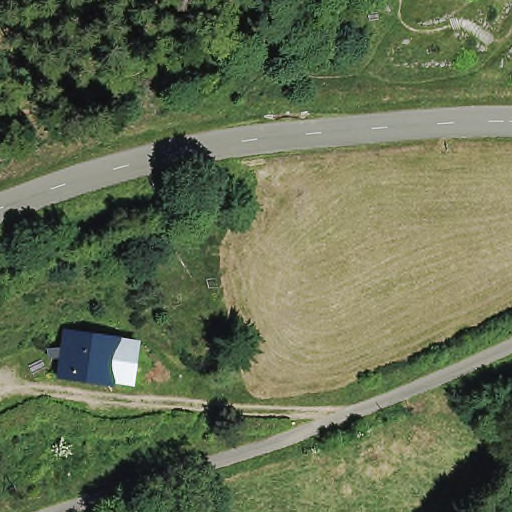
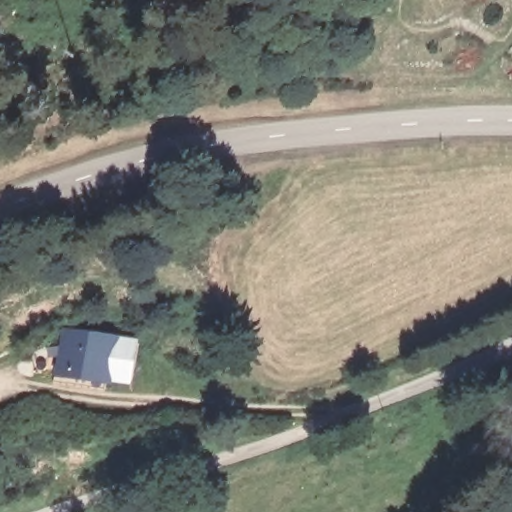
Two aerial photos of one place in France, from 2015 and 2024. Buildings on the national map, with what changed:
unchanged [(117,381),(104,380),(57,376),(62,340),(109,345),(120,346),(117,381)]

